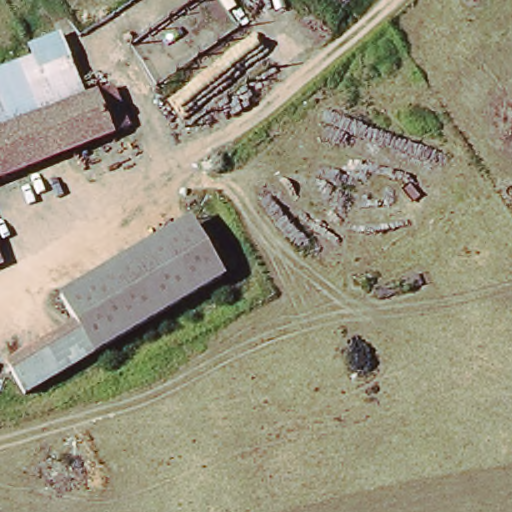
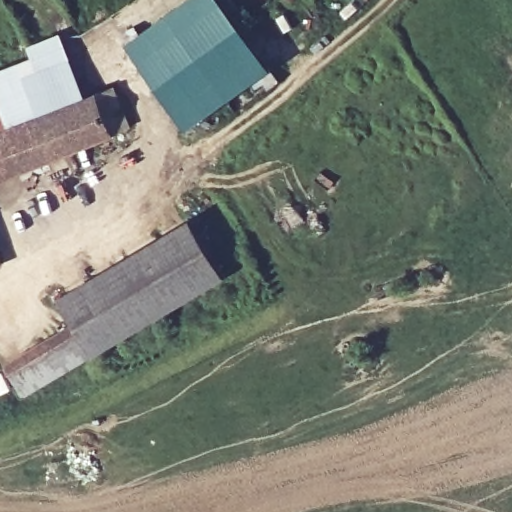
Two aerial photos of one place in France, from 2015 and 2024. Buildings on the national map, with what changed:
new [(126,43),(186,0),(220,0),(270,67),(186,126),(126,43)]
unchanged [(44,57),(41,46),(75,38),(97,104),(0,138),(0,73),(44,57)]
unchanged [(97,104),(124,96),(140,130),(0,178),(0,138),(97,104)]
unchanged [(200,219),(231,276),(180,305),(146,247),(200,219)]
unchanged [(13,361),(62,334),(87,320),(70,287),(146,247),(180,305),(102,348),(77,362),(30,388),(13,361)]

